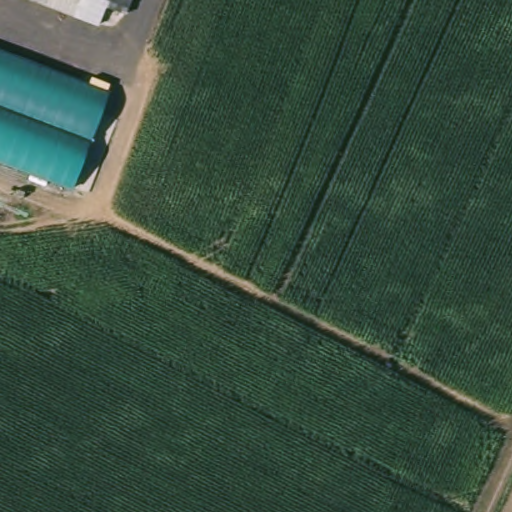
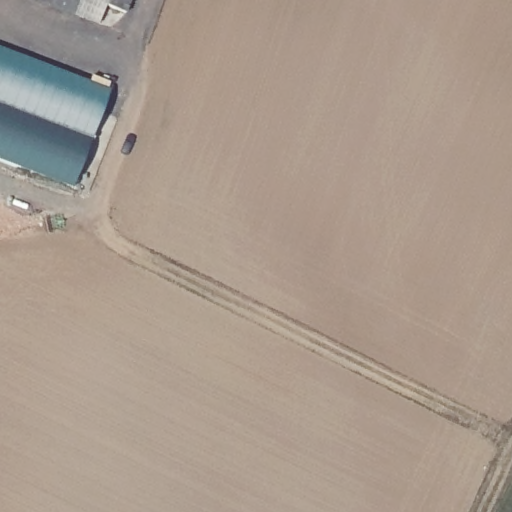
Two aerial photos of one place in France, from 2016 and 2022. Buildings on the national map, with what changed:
unchanged [(52,0),(112,0),(106,19),(52,0)]
unchanged [(112,0),(134,0),(131,6),(112,0)]
unchanged [(113,91),(82,179),(80,188),(79,187),(42,175),(0,160),(0,51),(85,81),(113,91)]

